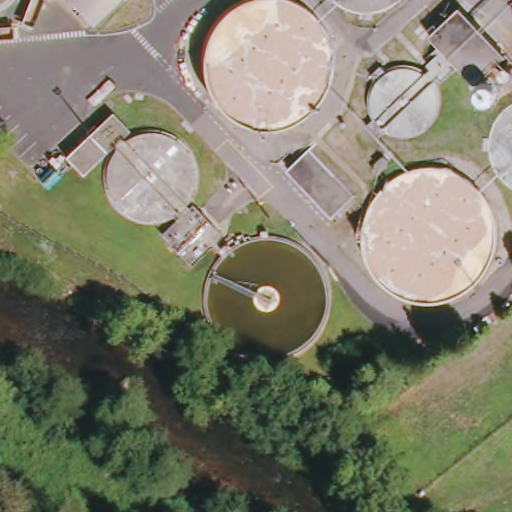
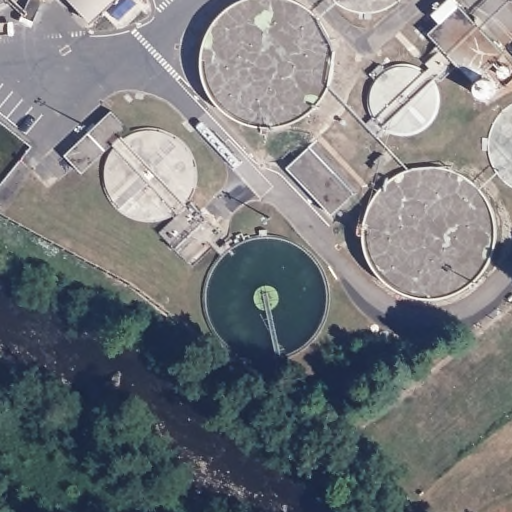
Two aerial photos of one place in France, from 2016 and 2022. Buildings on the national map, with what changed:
unchanged [(72,0),(126,0),(97,27),(72,0)]
unchanged [(512,62),(512,65),(483,92),(467,72),(452,89),(436,73),(454,57),(442,45),(470,19),(512,62)]
unchanged [(114,114),(134,132),(88,177),(69,155),(114,114)]
unchanged [(310,141),(367,203),(343,225),(286,161),(310,141)]
unchanged [(198,205),(224,232),(193,259),(168,232),(198,205)]

